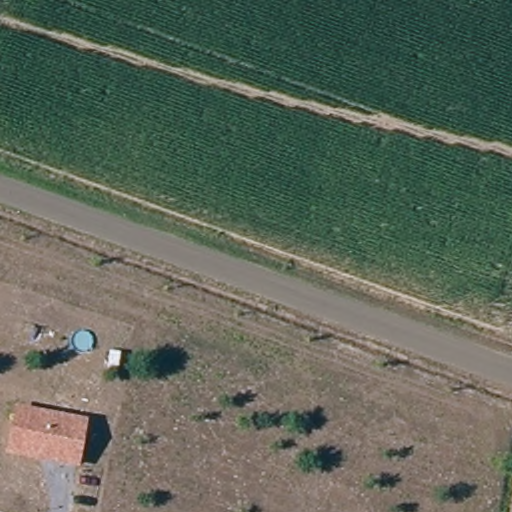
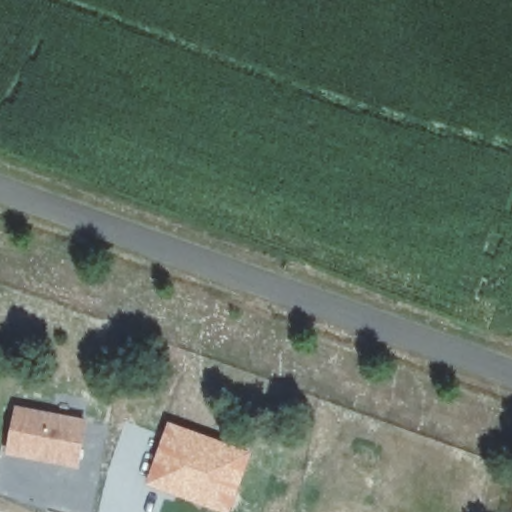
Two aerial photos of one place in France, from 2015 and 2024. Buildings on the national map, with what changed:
unchanged [(88,418),(80,467),(5,454),(15,404),(88,418)]
new [(252,449),(230,512),(222,512),(144,483),(167,420),(252,449)]

